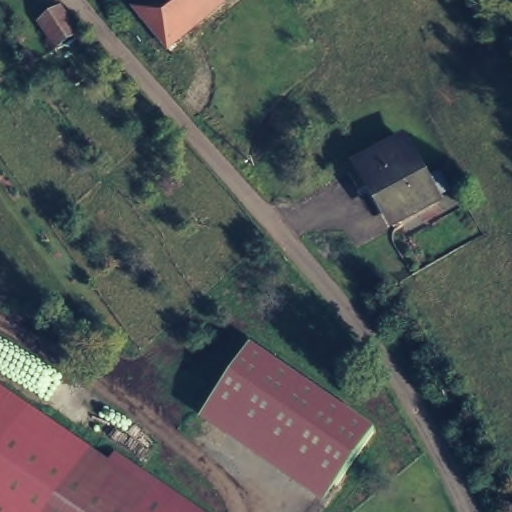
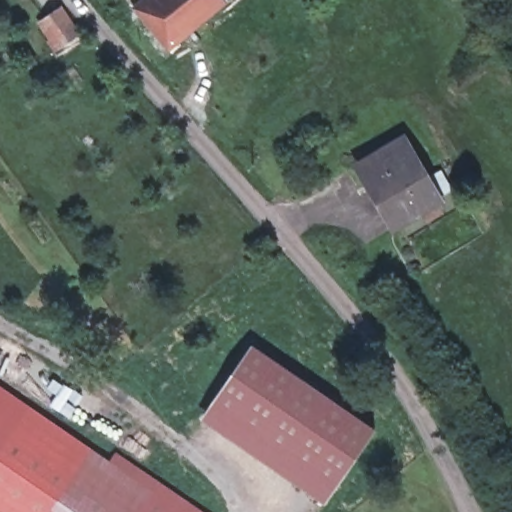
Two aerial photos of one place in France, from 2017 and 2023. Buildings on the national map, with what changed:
unchanged [(130,0),(215,0),(199,13),(191,3),(171,19),(179,29),(169,38),(175,45),(165,54),(123,5),(130,0)]
unchanged [(51,44),(49,41),(33,17),(55,3),(71,30),(51,44)]
unchanged [(433,185),(389,210),(355,154),(399,128),(433,185)]
unchanged [(253,345),(376,431),(325,504),(201,420),(253,345)]
unchanged [(187,512),(0,512),(0,383),(187,512)]

